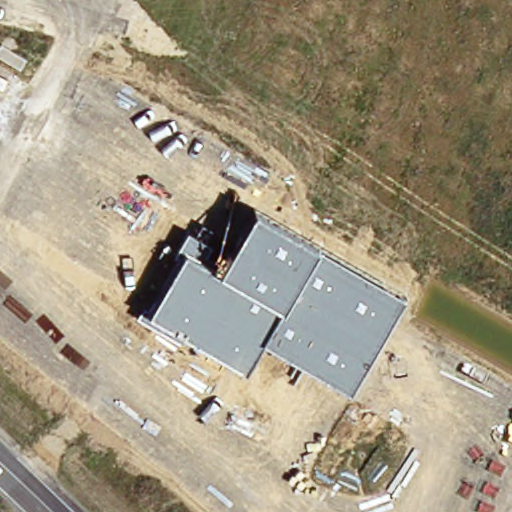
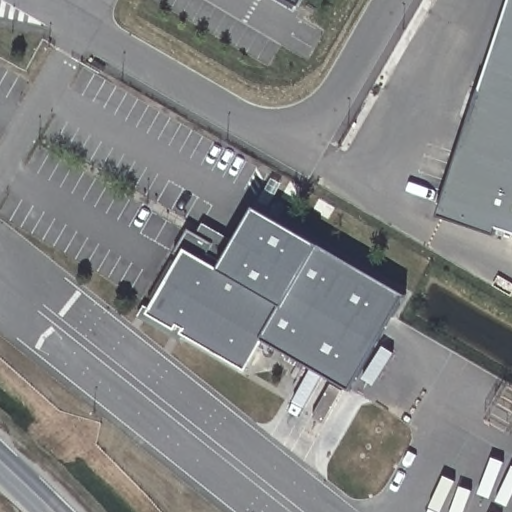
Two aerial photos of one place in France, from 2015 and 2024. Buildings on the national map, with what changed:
new [(296,5),(293,4),(291,9),(275,0),(299,0),(296,5)]
new [(493,233),(438,214),(459,150),(481,157),(500,98),(478,91),(508,0),(512,0),(512,233),(496,227),(493,233)]
new [(478,91),(500,98),(481,157),(459,150),(478,91)]
unchanged [(317,246),(402,295),(348,390),(261,338),(244,368),(183,332),(179,341),(137,315),(188,231),(229,252),(255,208),(317,246)]

